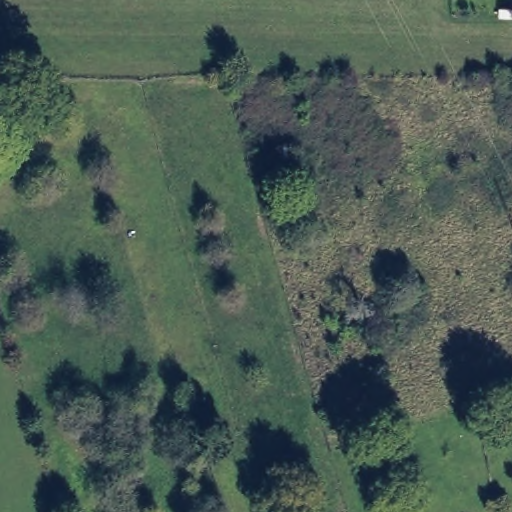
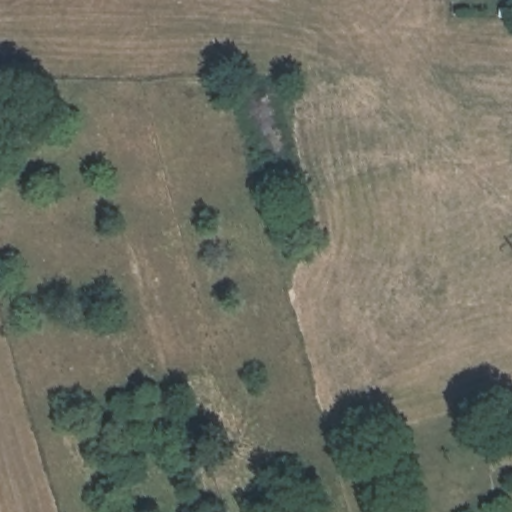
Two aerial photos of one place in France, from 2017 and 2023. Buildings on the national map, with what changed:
unchanged [(139,491),(146,512),(126,512),(121,496),(139,491)]

